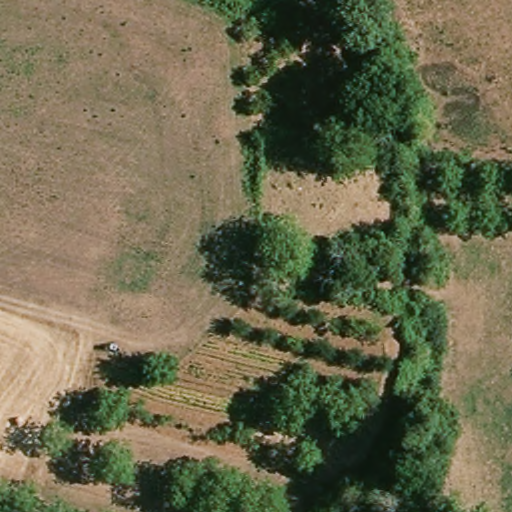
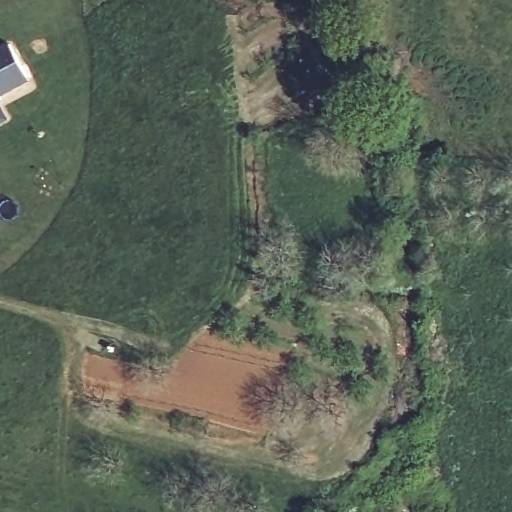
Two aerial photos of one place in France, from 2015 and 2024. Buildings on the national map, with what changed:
new [(13,41),(34,80),(2,99),(12,118),(0,125),(0,49),(13,41)]

